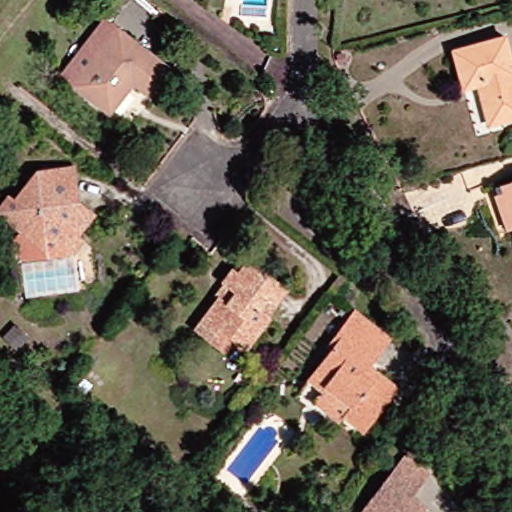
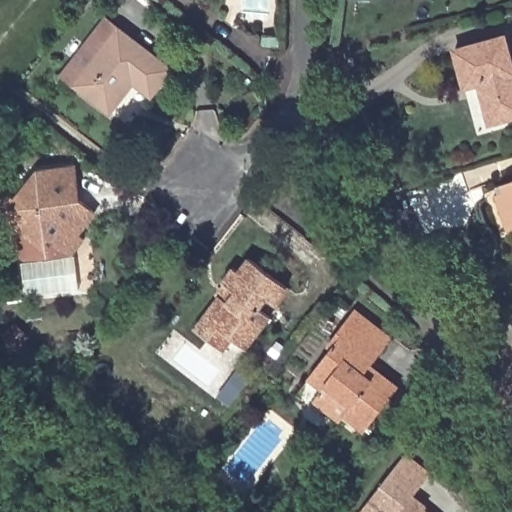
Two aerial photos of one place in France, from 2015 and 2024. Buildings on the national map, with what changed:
unchanged [(67,83),(109,28),(174,81),(153,107),(136,94),(114,123),(67,83)]
unchanged [(502,40),(512,78),(512,120),(484,128),(474,87),(459,91),(450,54),(502,40)]
unchanged [(50,246),(37,235),(25,248),(8,233),(11,229),(0,219),(0,199),(4,194),(9,199),(31,172),(66,167),(69,187),(71,203),(86,214),(71,234),(78,239),(64,256),(50,246)]
unchanged [(511,232),(503,233),(491,199),(498,197),(496,188),(508,185),(512,183),(512,235),(511,232)]
unchanged [(205,342),(191,330),(214,300),(210,297),(219,286),(231,270),(234,273),(244,260),(284,291),(273,306),(265,300),(257,311),(268,320),(243,353),(231,342),(222,355),(205,342)]
unchanged [(329,335),(346,314),(381,343),(366,364),(329,335)]
unchanged [(353,437),(334,421),(329,426),(303,405),(311,394),(299,383),(322,353),(318,350),(329,335),(366,364),(362,368),(369,374),(389,391),(353,437)]
unchanged [(400,454),(425,475),(407,497),(421,507),(419,510),(422,512),(355,512),(358,509),(400,454)]

